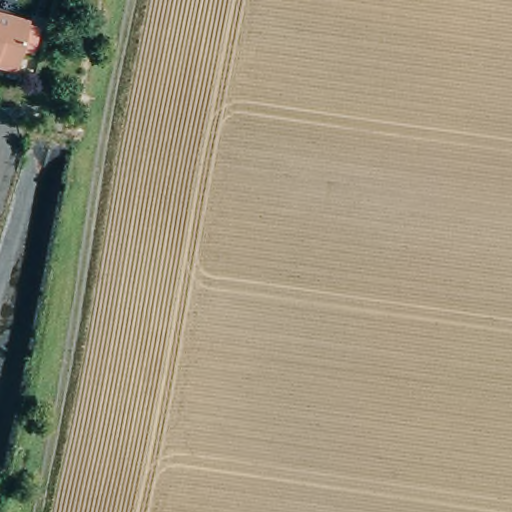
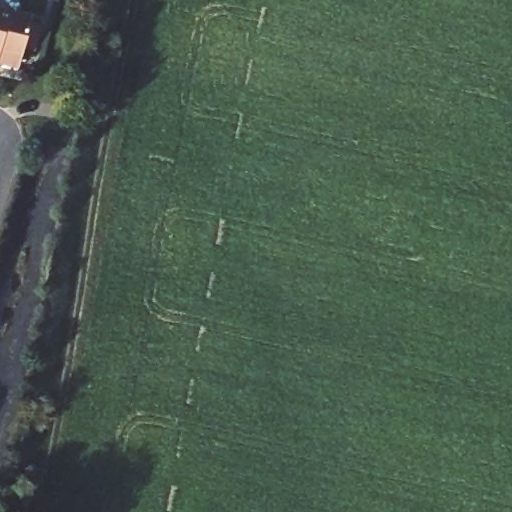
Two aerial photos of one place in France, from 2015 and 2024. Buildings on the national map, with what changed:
unchanged [(29,26),(16,76),(0,72),(0,19),(29,26)]

